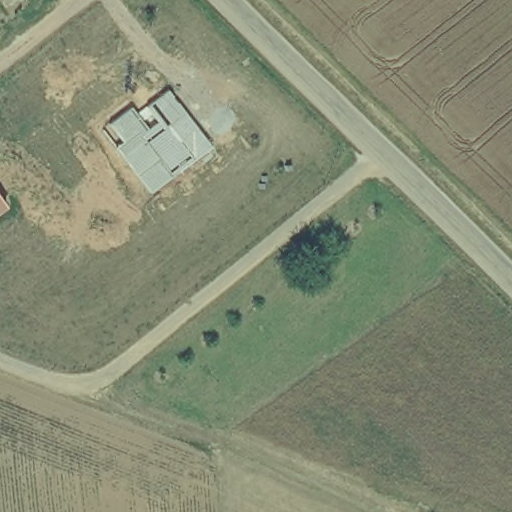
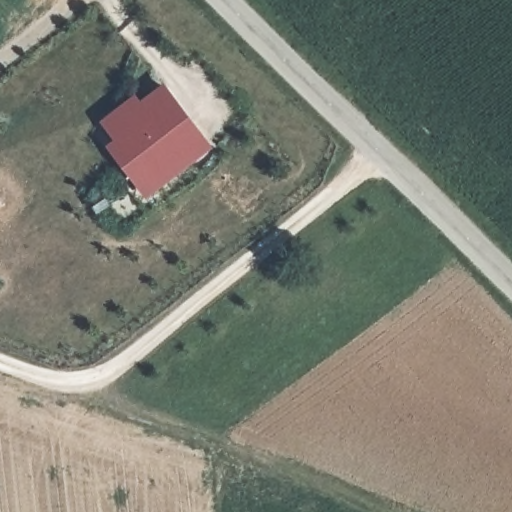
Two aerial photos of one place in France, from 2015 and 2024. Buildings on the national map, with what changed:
unchanged [(115,147),(120,143),(107,124),(128,107),(133,113),(166,89),(208,146),(149,192),(115,147)]
unchanged [(0,194),(2,198),(0,199),(0,194)]

